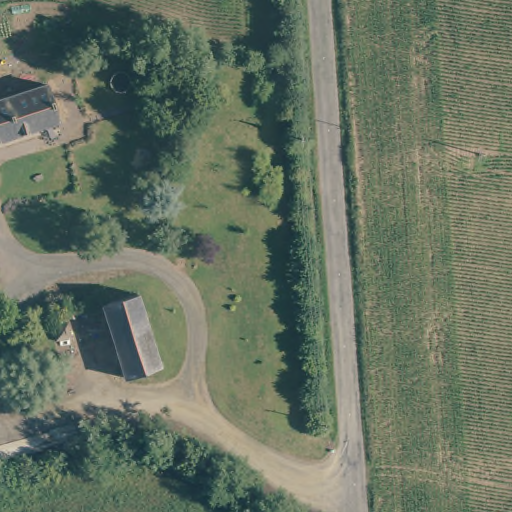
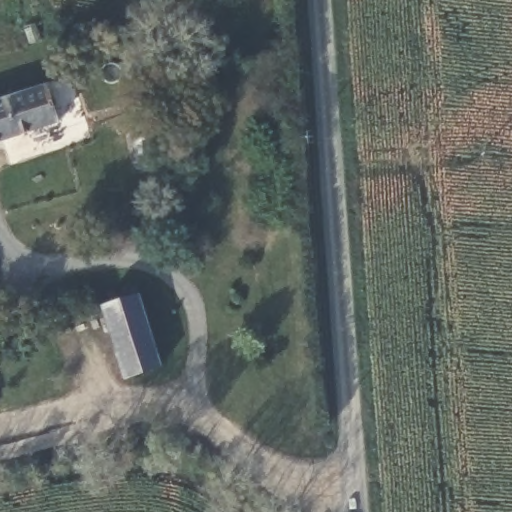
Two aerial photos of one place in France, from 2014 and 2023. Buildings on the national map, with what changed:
unchanged [(58,88),(67,126),(0,142),(0,101),(58,88)]
unchanged [(141,289),(165,364),(151,368),(124,376),(102,302),(141,289)]

